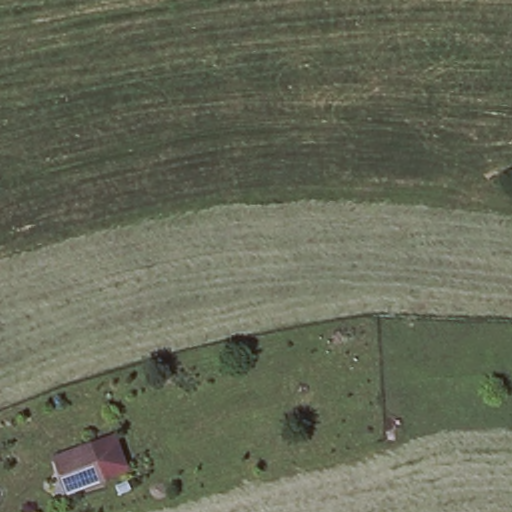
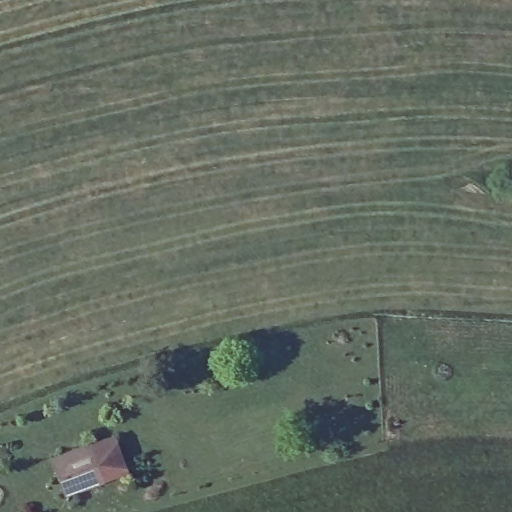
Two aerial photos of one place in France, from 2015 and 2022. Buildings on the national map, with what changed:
unchanged [(101,441),(115,477),(84,488),(71,453),(101,441)]

